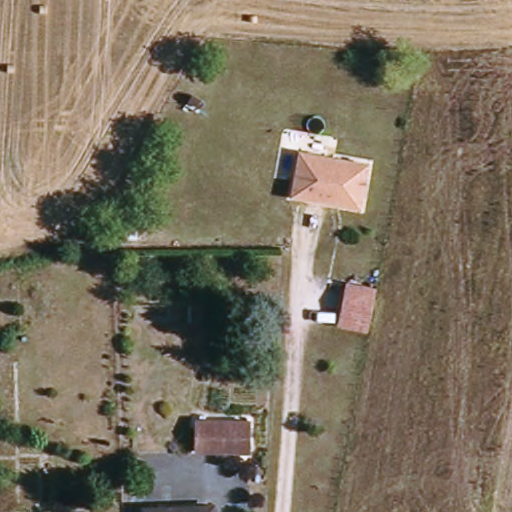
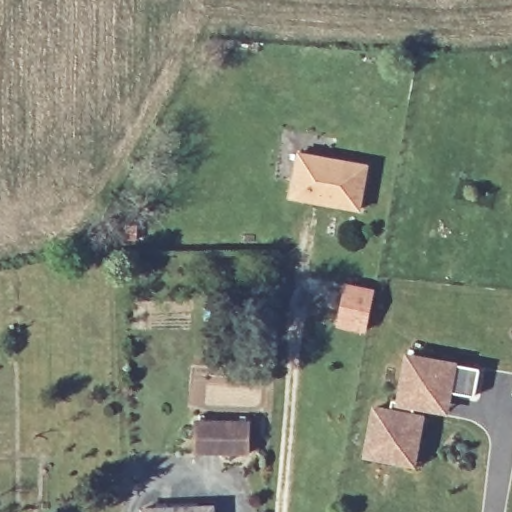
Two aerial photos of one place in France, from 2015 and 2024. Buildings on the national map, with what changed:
unchanged [(300,197),(308,152),(376,165),(368,208),(342,204),(321,200),(300,197)]
unchanged [(378,291),(370,331),(343,326),(350,286),(378,291)]
new [(481,366),(476,396),(454,392),(450,414),(427,411),(416,467),(363,457),(373,405),(396,408),(406,352),(481,366)]
unchanged [(200,451),(200,421),(249,422),(248,452),(200,451)]
unchanged [(145,512),(145,510),(217,506),(217,512),(145,512)]

